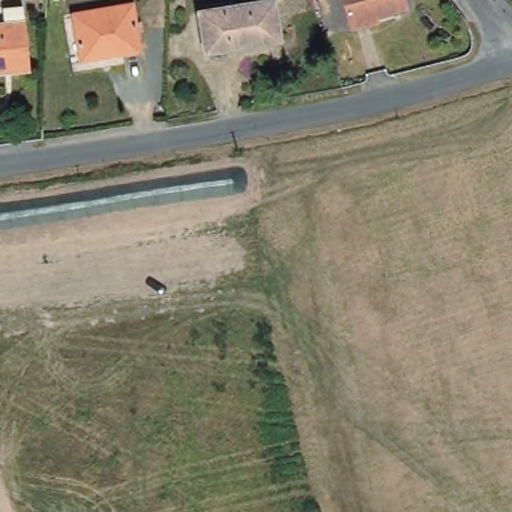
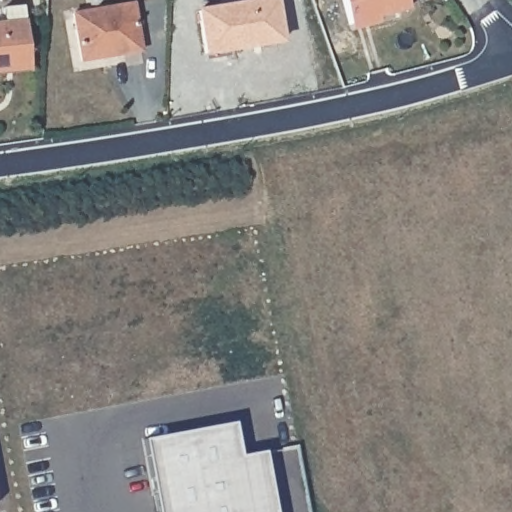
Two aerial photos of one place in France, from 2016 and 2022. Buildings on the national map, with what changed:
unchanged [(348,27),(341,0),(402,0),(405,11),(348,27)]
unchanged [(272,2),(279,43),(202,55),(196,14),(272,2)]
unchanged [(133,4),(140,50),(81,60),(74,13),(133,4)]
unchanged [(0,17),(0,12),(19,9),(25,67),(0,69),(0,27),(1,27),(0,17)]
new [(142,439),(233,423),(239,456),(263,452),(274,512),(156,512),(142,439)]

